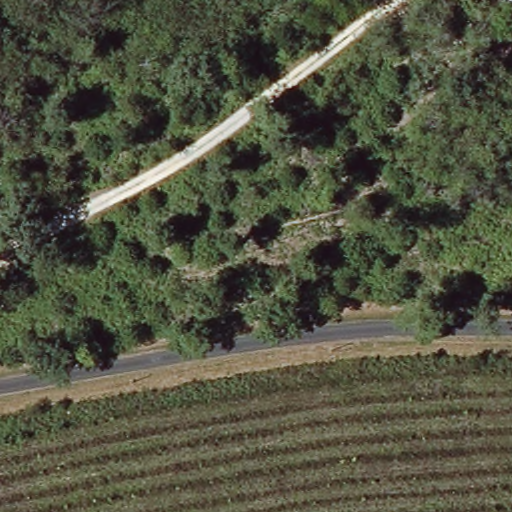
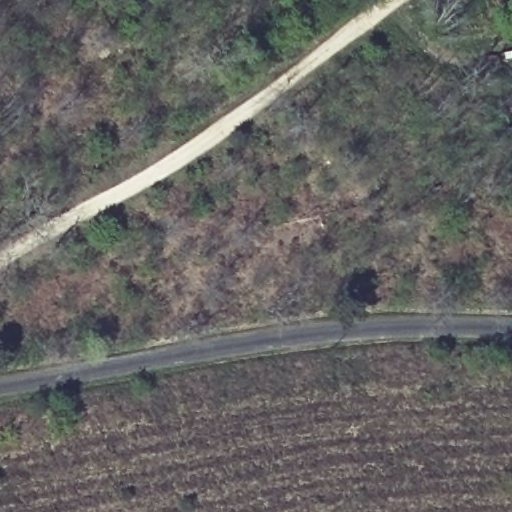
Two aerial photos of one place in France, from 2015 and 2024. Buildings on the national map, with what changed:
[]

